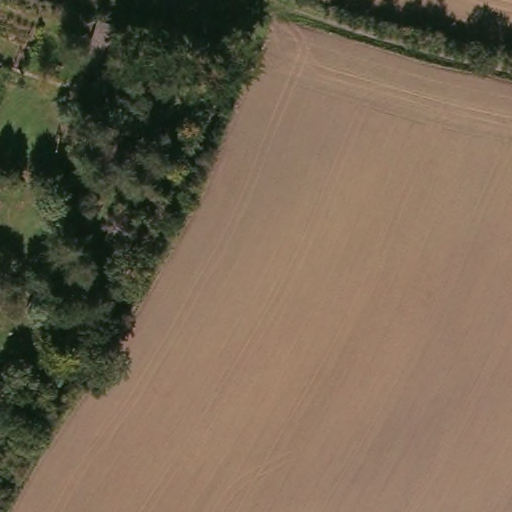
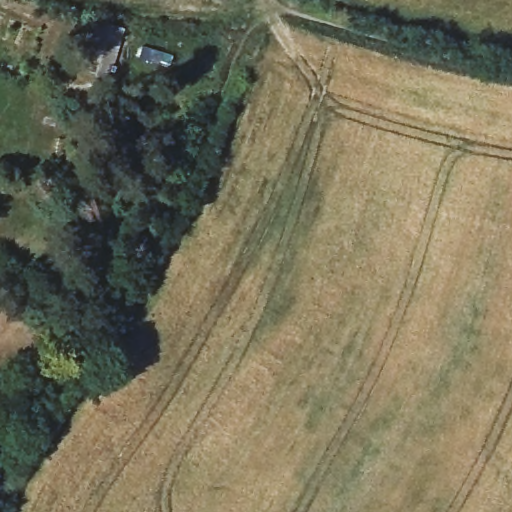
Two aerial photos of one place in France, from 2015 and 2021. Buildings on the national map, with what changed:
unchanged [(119,36),(111,65),(88,59),(97,29),(119,36)]

